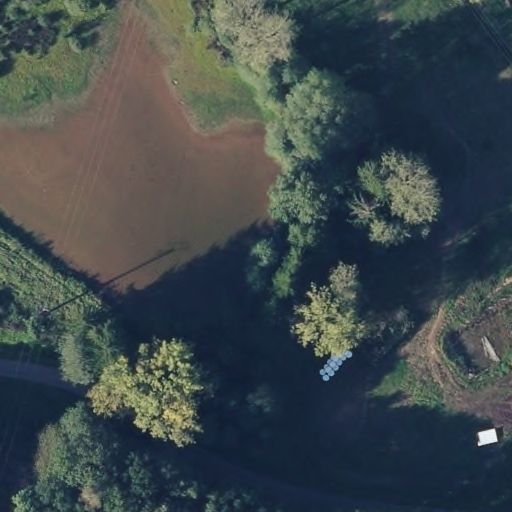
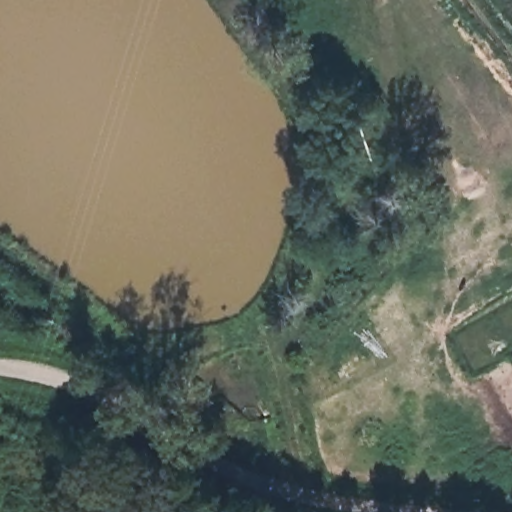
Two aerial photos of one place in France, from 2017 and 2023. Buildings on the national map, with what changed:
[]

